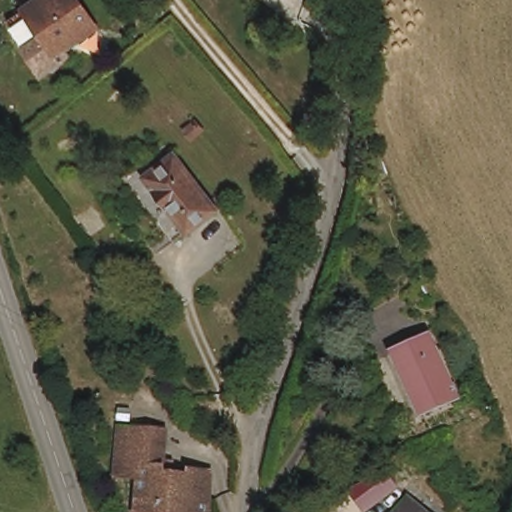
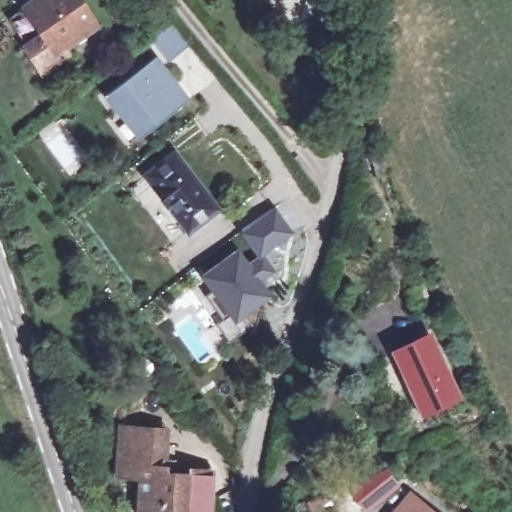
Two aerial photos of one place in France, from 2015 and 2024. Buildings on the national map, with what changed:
unchanged [(99,24),(68,44),(72,51),(47,67),(30,41),(49,30),(32,4),(37,0),(83,0),(99,24)]
new [(167,20),(187,42),(165,62),(145,40),(167,20)]
new [(156,55),(189,99),(135,139),(103,95),(156,55)]
unchanged [(175,158),(218,213),(192,232),(148,178),(175,158)]
new [(210,291),(198,275),(237,248),(247,261),(255,256),(239,231),(275,207),(292,234),(262,254),(274,271),(260,281),(271,295),(232,322),(227,315),(220,320),(205,296),(210,291)]
unchanged [(393,356),(404,351),(433,338),(457,399),(427,411),(417,416),(393,356)]
unchanged [(123,483),(113,483),(114,462),(115,435),(160,435),(158,463),(169,463),(168,477),(185,477),(185,471),(207,471),(204,512),(135,512),(136,483),(123,483)]
unchanged [(386,512),(405,492),(427,512),(386,512)]

